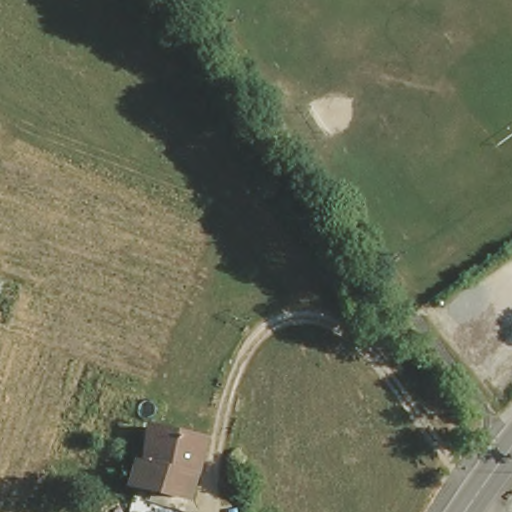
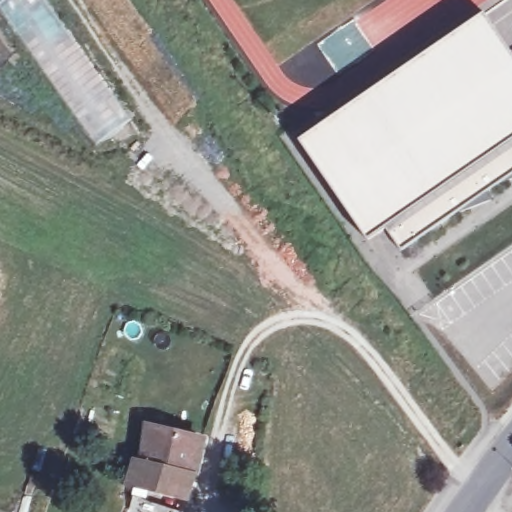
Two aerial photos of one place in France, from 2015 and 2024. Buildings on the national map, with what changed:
new [(96,144),(40,69),(0,10),(0,0),(47,0),(131,120),(96,144)]
new [(384,226),(366,238),(301,141),(484,15),(512,54),(512,173),(402,249),(384,226)]
demolished [(0,321),(0,278),(166,333),(152,371),(0,321)]
unchanged [(151,430),(205,447),(194,480),(191,493),(188,503),(130,489),(133,466),(139,468),(141,459),(151,430)]

